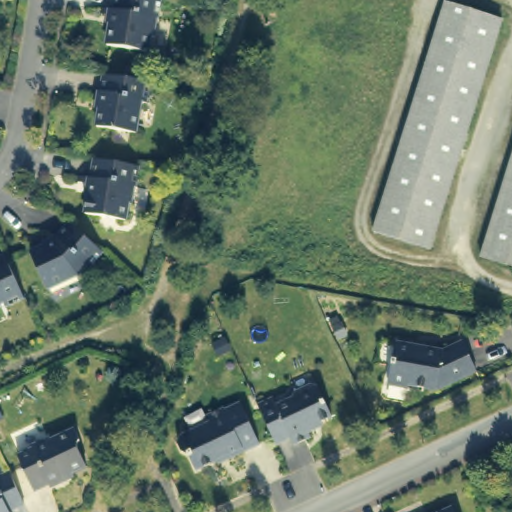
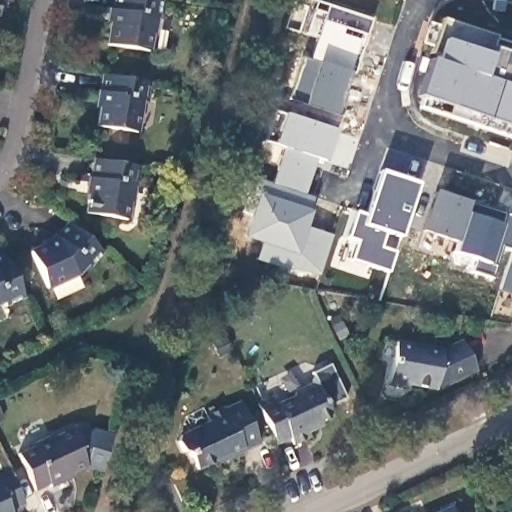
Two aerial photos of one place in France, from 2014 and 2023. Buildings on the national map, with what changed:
unchanged [(1,0),(0,7),(0,0),(1,0)]
unchanged [(156,16),(153,36),(150,37),(148,51),(109,44),(111,22),(114,23),(117,0),(161,0),(159,16),(156,16)]
new [(501,0),(505,1),(502,12),(492,10),(494,0),(501,0)]
demolished [(446,2),(502,20),(430,246),(373,228),(446,2)]
new [(472,126),(417,107),(420,98),(415,96),(427,59),(434,62),(436,56),(429,53),(441,19),(495,37),(491,47),(512,55),(512,139),(482,129),(472,126)]
new [(301,56),(349,71),(340,97),(345,99),(339,116),(287,98),(301,56)]
unchanged [(149,101),(144,100),(139,131),(99,126),(105,91),(102,91),(105,72),(152,80),(149,101)]
new [(273,109),(335,130),(324,160),(315,157),(302,193),(271,182),(283,147),(262,140),(273,109)]
demolished [(512,265),(480,255),(512,156),(512,265)]
unchanged [(135,189),(132,189),(130,206),(127,207),(125,222),(84,215),(92,162),(139,169),(135,189)]
new [(355,211),(364,214),(379,171),(417,184),(399,237),(385,232),(380,246),(394,251),(387,272),(349,259),(355,241),(345,237),(355,211)]
new [(243,173),(271,182),(302,193),(312,196),(300,234),(308,236),(302,254),(314,258),(309,272),(277,266),(280,258),(272,256),(275,245),(245,235),(252,215),(240,210),(246,193),(237,190),(243,173)]
new [(435,191),(468,202),(455,242),(421,230),(435,191)]
new [(468,202),(469,201),(488,207),(486,212),(502,217),(504,212),(512,215),(512,246),(510,251),(501,247),(490,278),(470,272),(474,260),(452,252),(455,242),(468,202)]
unchanged [(94,270),(89,267),(81,277),(51,291),(34,257),(59,245),(73,226),(106,254),(94,270)]
new [(512,246),(512,295),(497,290),(510,251),(512,246)]
unchanged [(6,306),(4,300),(0,302),(0,254),(2,254),(24,297),(6,306)]
unchanged [(445,347),(449,346),(456,360),(458,358),(451,346),(466,338),(472,352),(480,367),(438,387),(391,380),(398,340),(445,347)]
unchanged [(273,397),(277,405),(293,396),(296,388),(313,381),(319,383),(333,415),(316,424),(317,426),(310,431),(311,434),(294,442),(291,436),(277,443),(258,403),(273,397)]
unchanged [(204,422),(201,416),(220,407),(220,409),(237,402),(255,442),(222,458),(221,456),(192,469),(185,453),(178,451),(174,442),(175,435),(204,422)]
unchanged [(30,450),(29,447),(48,437),(50,441),(72,431),(77,440),(75,447),(84,465),(83,468),(62,478),(60,483),(49,488),(47,484),(32,490),(16,456),(30,450)]
unchanged [(6,512),(0,512),(0,475),(6,472),(21,505),(6,512)]
unchanged [(450,502),(455,512),(430,512),(450,502)]

